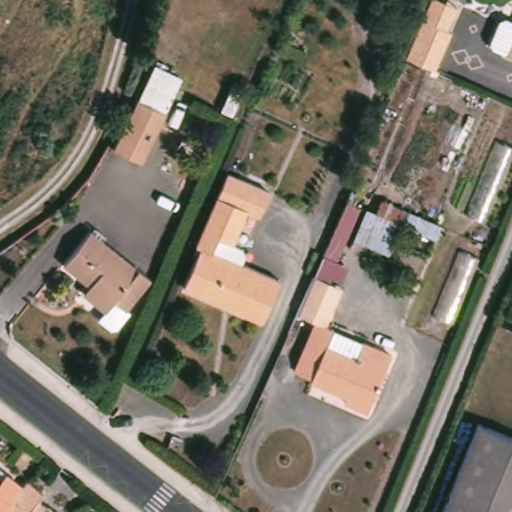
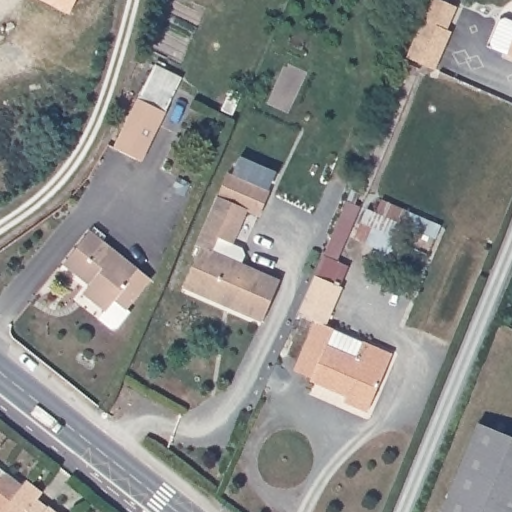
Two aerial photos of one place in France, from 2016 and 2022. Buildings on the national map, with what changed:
new [(69,12),(46,0),(76,0),(69,12)]
unchanged [(419,21),(428,0),(433,0),(452,9),(442,31),(447,34),(430,71),(402,59),(419,21)]
unchanged [(503,59),(512,39),(512,63),(503,59)]
unchanged [(134,100),(151,64),(183,79),(166,115),(134,100)]
unchanged [(163,117),(139,165),(114,152),(138,105),(163,117)]
unchanged [(228,179),(270,197),(260,221),(247,216),(232,250),(242,255),(245,261),(241,270),(279,287),(261,328),(183,292),(200,253),(196,251),(218,202),(228,179)]
unchanged [(358,193),(353,205),(359,207),(337,260),(322,255),(350,190),(358,193)]
unchanged [(388,256),(349,240),(363,210),(401,226),(388,256)]
unchanged [(438,229),(434,239),(423,234),(427,224),(438,229)]
unchanged [(89,285),(63,265),(90,232),(148,280),(124,309),(114,300),(105,312),(89,299),(82,293),(89,285)]
unchanged [(296,314),(313,276),(339,287),(323,325),(332,329),(325,345),(358,358),(365,342),(389,352),(364,411),(343,402),(346,396),(309,381),(311,377),(294,370),(314,322),(296,314)]
unchanged [(512,438),(512,512),(439,512),(454,478),(477,423),(512,438)]
unchanged [(0,480),(12,490),(0,507),(0,480)]
unchanged [(26,483),(40,495),(34,501),(45,510),(47,508),(52,512),(5,512),(13,500),(26,483)]

